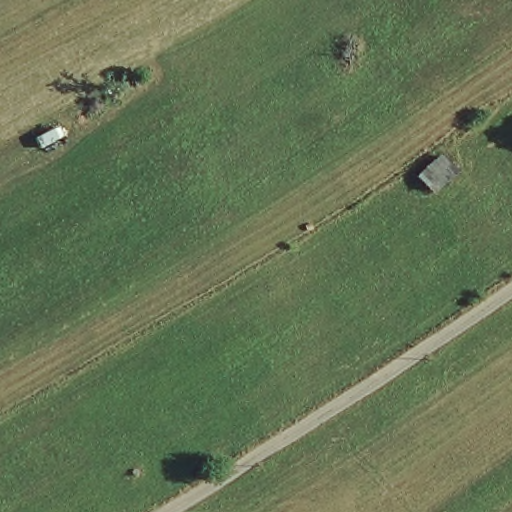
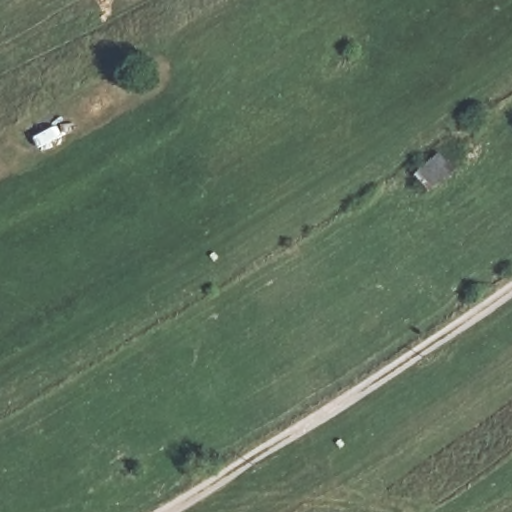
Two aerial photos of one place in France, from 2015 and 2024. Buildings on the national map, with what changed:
unchanged [(428,198),(411,170),(446,145),(467,171),(428,198)]

